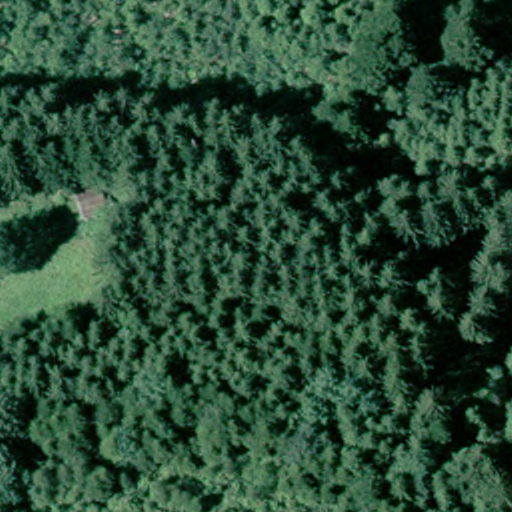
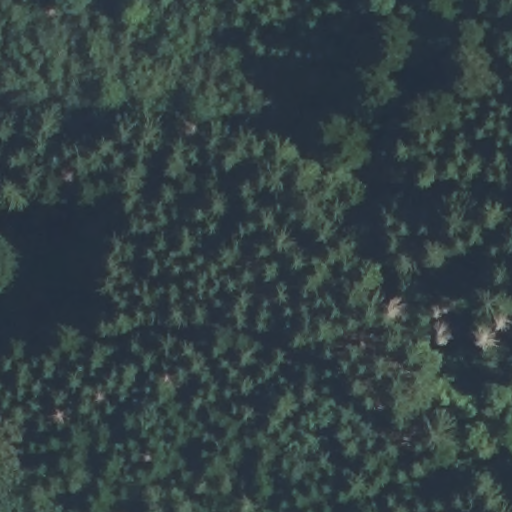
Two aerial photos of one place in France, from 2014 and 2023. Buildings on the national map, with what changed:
unchanged [(132,219),(114,226),(104,201),(123,194),(132,219)]

